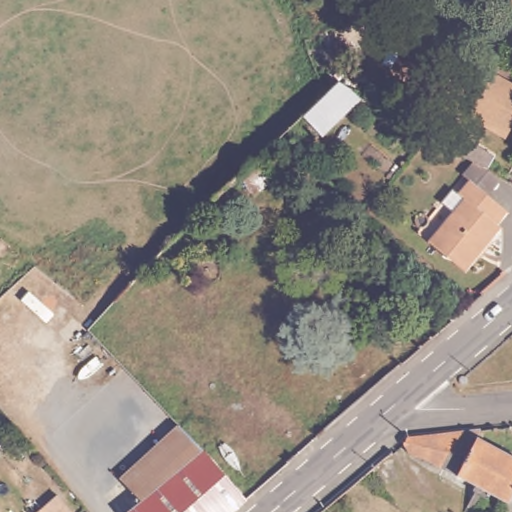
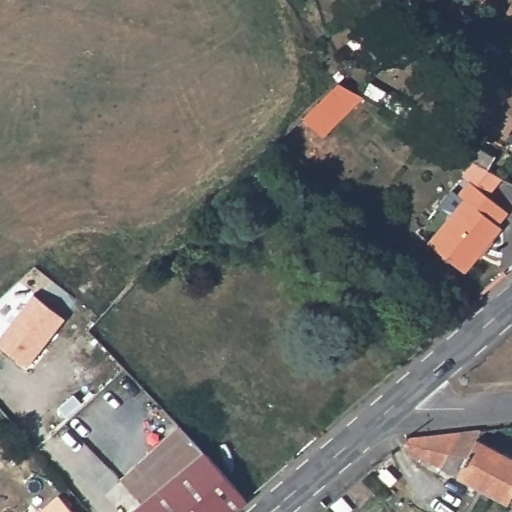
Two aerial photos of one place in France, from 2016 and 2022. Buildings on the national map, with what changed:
unchanged [(512,4),(512,19),(505,14),(512,4)]
unchanged [(498,23),(509,30),(498,46),(488,38),(498,23)]
unchanged [(323,134),(302,113),(339,79),(364,94),(323,134)]
unchanged [(512,123),(505,134),(467,111),(487,79),(512,94),(512,123)]
unchanged [(465,142),(495,159),(488,172),(458,154),(465,142)]
unchanged [(465,203),(460,198),(472,185),(508,219),(499,229),(502,233),(463,276),(427,244),(465,203)]
new [(26,366),(0,345),(0,335),(33,293),(65,318),(26,366)]
unchanged [(138,503),(119,479),(177,427),(201,455),(242,502),(231,512),(128,512),(138,503)]
unchanged [(479,440),(480,444),(512,461),(512,509),(427,462),(414,457),(410,454),(404,443),(407,440),(480,433),(479,435),(479,440)]
unchanged [(57,498),(70,512),(40,512),(57,498)]

